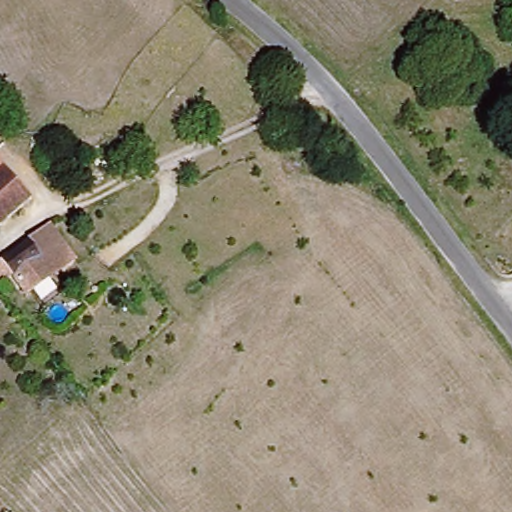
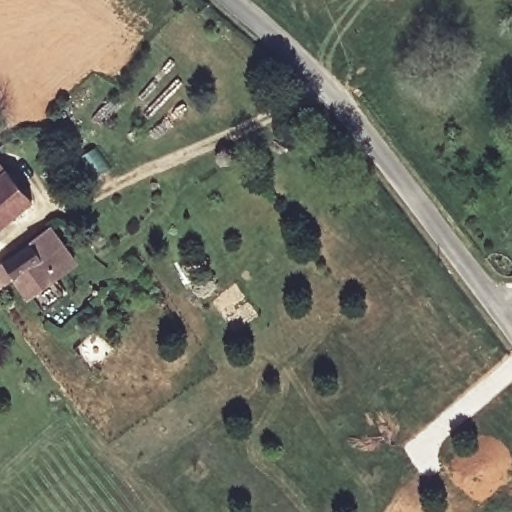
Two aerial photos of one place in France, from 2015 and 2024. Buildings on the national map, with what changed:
unchanged [(36,200),(0,231),(0,158),(36,200)]
unchanged [(68,269),(25,298),(1,263),(45,234),(68,269)]

